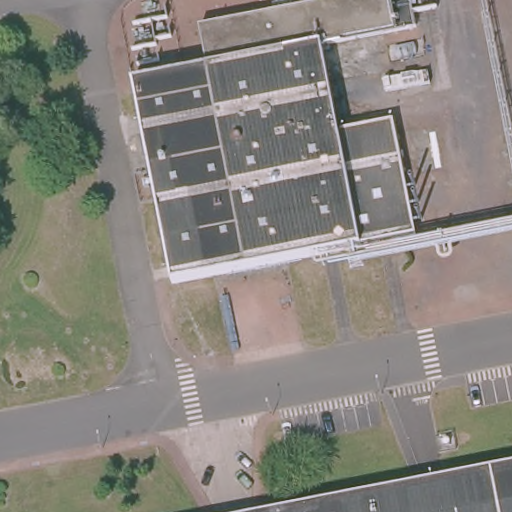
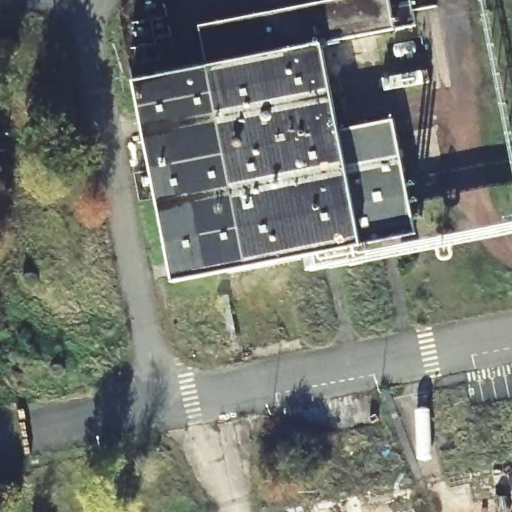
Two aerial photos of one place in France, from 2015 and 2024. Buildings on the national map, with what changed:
unchanged [(204,68),(196,26),(320,0),(407,0),(411,20),(319,42),(335,127),(389,116),(414,229),(172,279),(131,80),(204,68)]
demolished [(512,442),(512,512),(179,512),(512,442)]

